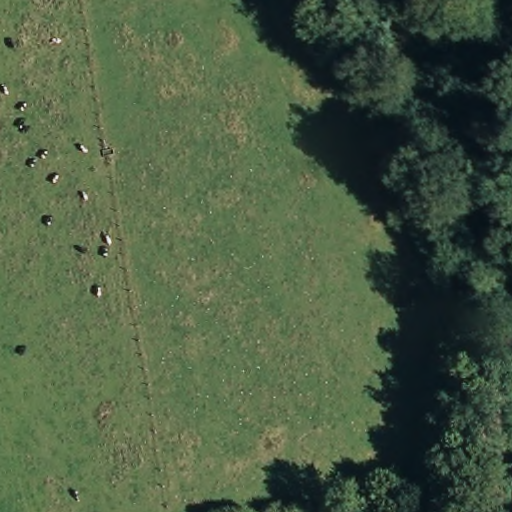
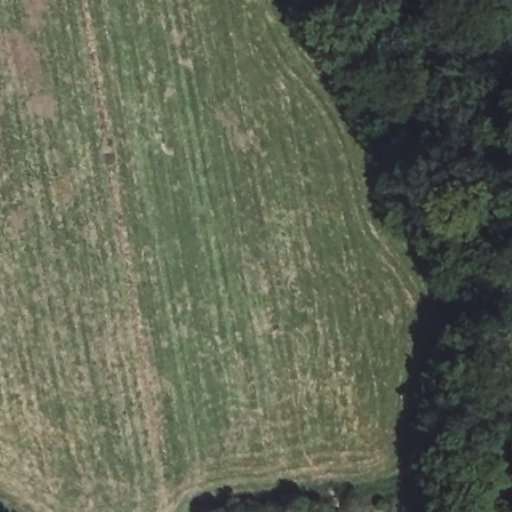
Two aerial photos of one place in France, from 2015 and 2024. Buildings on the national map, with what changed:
[]

